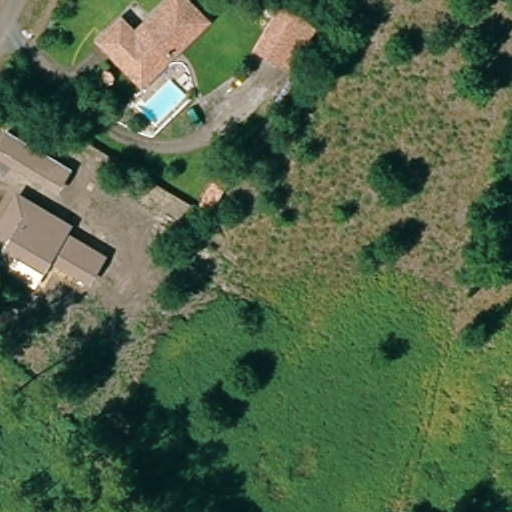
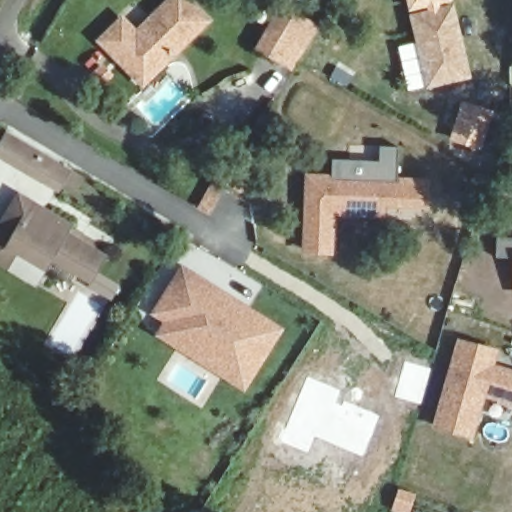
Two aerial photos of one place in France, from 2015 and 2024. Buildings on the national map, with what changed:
unchanged [(113,52),(98,37),(119,15),(133,30),(162,0),(188,0),(205,16),(148,73),(141,80),(113,52)]
unchanged [(283,57),(261,44),(287,1),(309,14),(322,22),(296,65),(283,57)]
new [(471,75),(430,86),(412,16),(452,6),(462,41),(465,52),(471,75)]
unchanged [(10,128),(71,164),(59,185),(0,151),(0,144),(10,128)]
new [(302,253),(305,174),(332,174),(333,159),(380,160),(381,146),(399,147),(398,177),(429,178),(427,207),(385,206),(385,217),(335,215),(334,254),(302,253)]
new [(222,164),(232,171),(206,214),(196,208),(222,164)]
unchanged [(20,193),(32,200),(68,221),(63,229),(103,253),(90,275),(51,252),(44,263),(19,248),(10,263),(0,258),(0,226),(17,198),(20,193)]
new [(512,237),(512,257),(494,257),(495,236),(512,237)]
new [(156,335),(163,322),(150,314),(182,263),(284,328),(245,390),(156,335)]
new [(457,338),(499,349),(495,364),(512,370),(512,405),(485,397),(473,439),(433,427),(457,338)]

